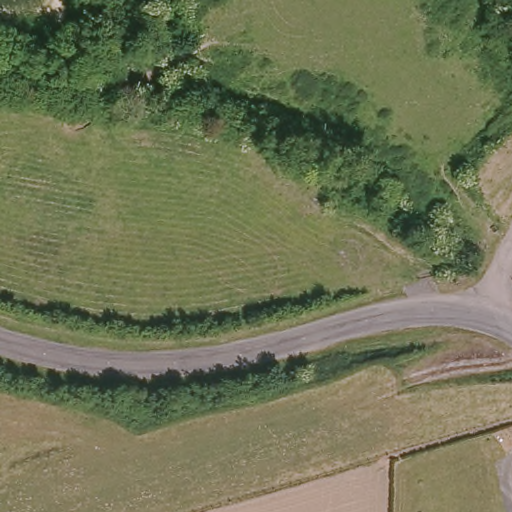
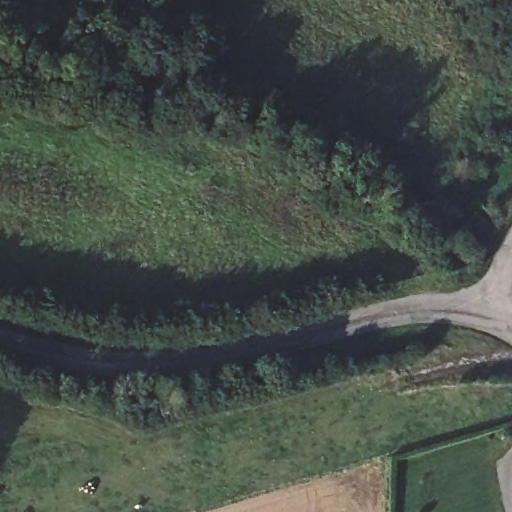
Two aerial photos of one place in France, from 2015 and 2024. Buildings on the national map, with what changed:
unchanged [(119,74),(116,52),(152,47),(154,69),(119,74)]

